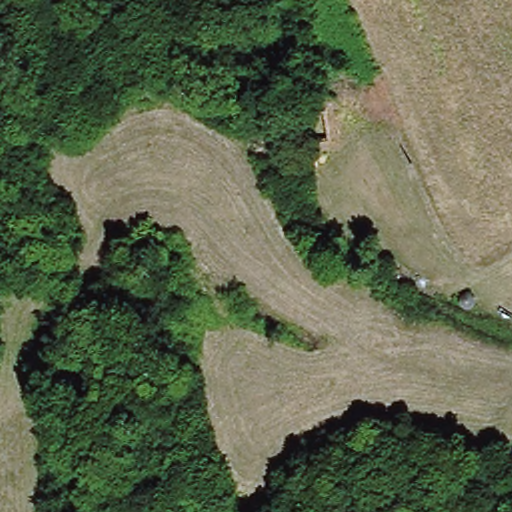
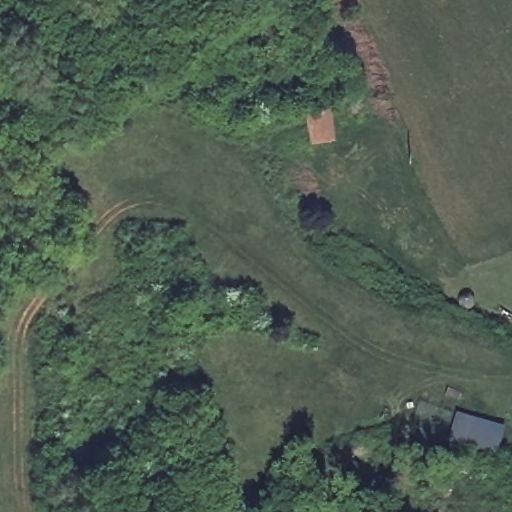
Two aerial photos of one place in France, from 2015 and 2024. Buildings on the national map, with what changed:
unchanged [(285,116),(316,111),(322,137),(289,142),(285,116)]
new [(448,443),(457,415),(505,429),(496,457),(448,443)]

